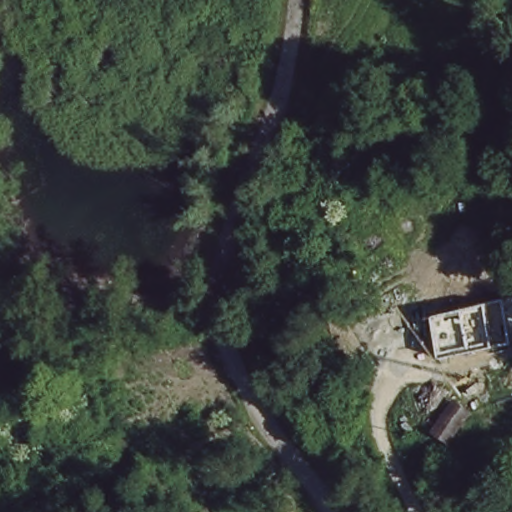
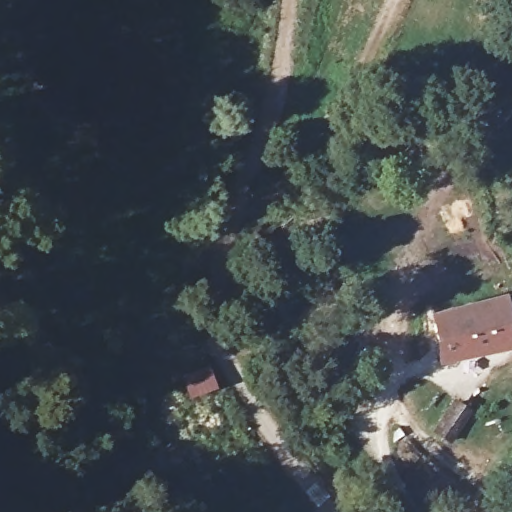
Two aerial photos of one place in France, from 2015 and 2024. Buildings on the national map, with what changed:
unchanged [(447,312),(505,304),(511,350),(433,357),(429,298),(444,296),(447,312)]
unchanged [(463,421),(446,445),(430,431),(448,410),(463,421)]

